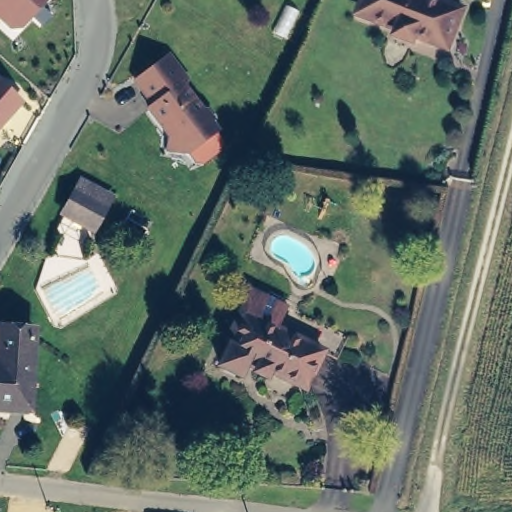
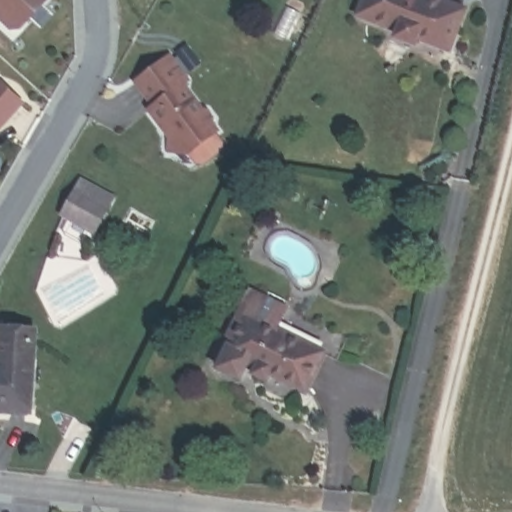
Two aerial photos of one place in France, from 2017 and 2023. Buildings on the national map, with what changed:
unchanged [(14,26),(5,17),(6,12),(0,6),(0,0),(46,0),(22,26),(14,26)]
unchanged [(374,21),(364,17),(371,0),(433,0),(468,13),(453,51),(423,40),(420,46),(402,39),(404,32),(374,21)]
unchanged [(181,154),(168,152),(169,136),(149,109),(154,105),(136,81),(170,56),(188,81),(183,85),(201,109),(208,110),(214,119),(213,126),(218,132),(199,146),(188,155),(181,154)]
unchanged [(0,126),(0,81),(23,101),(0,126)]
unchanged [(77,185),(82,177),(110,192),(105,201),(93,225),(64,209),(77,185)]
unchanged [(244,312),(250,314),(253,310),(276,320),(274,326),(335,356),(325,378),(310,372),(293,407),(258,391),(254,397),(243,392),(246,384),(236,379),(228,395),(209,386),(244,312)]
unchanged [(34,407),(0,405),(0,328),(39,331),(34,407)]

